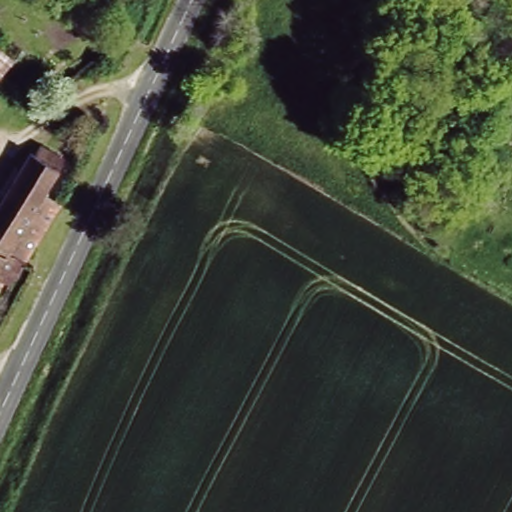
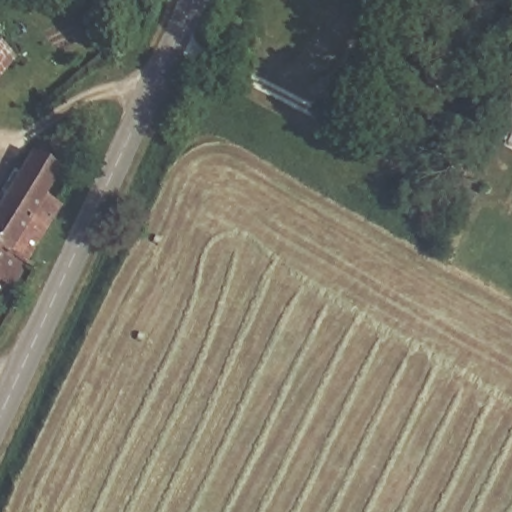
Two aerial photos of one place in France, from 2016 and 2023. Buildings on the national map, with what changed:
unchanged [(0,71),(0,45),(12,54),(0,71)]
unchanged [(0,273),(0,248),(0,205),(30,155),(35,159),(42,147),(66,161),(45,197),(61,207),(27,265),(16,282),(0,273)]

